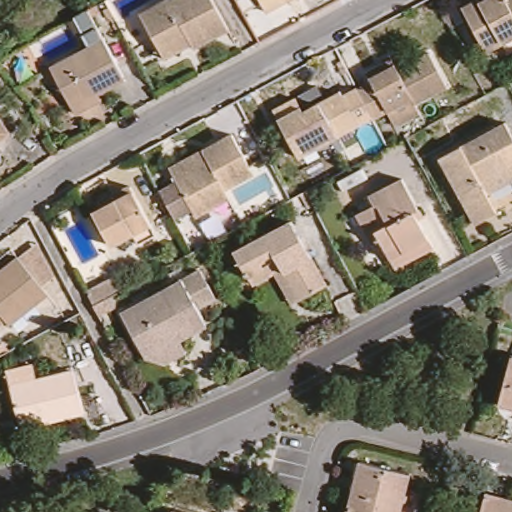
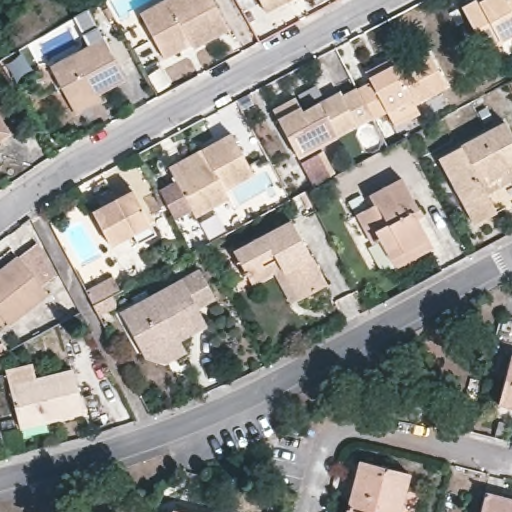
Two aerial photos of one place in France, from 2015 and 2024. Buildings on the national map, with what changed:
unchanged [(143,9),(159,0),(218,0),(233,27),(198,46),(195,41),(168,56),(162,45),(143,9)]
unchanged [(262,0),(278,0),(266,6),(262,0)]
unchanged [(502,34),(503,38),(487,46),(462,1),(464,0),(512,0),(512,28),(502,34)]
unchanged [(55,59),(107,30),(127,68),(102,83),(105,89),(79,103),(75,97),(55,59)]
unchanged [(362,86),(375,79),(374,75),(370,68),(395,55),(399,61),(406,58),(408,62),(433,49),(450,80),(417,99),(413,94),(377,114),(376,114),(362,86)]
unchanged [(298,144),(283,116),(278,106),(300,94),(306,104),(308,108),(345,88),(347,91),(360,84),(362,86),(376,114),(323,141),(320,134),(298,144)]
unchanged [(0,138),(0,109),(13,129),(0,138)]
unchanged [(478,218),(443,153),(510,118),(512,122),(512,201),(478,218)]
unchanged [(195,211),(173,172),(170,164),(202,146),(231,130),(252,169),(223,184),(228,194),(195,211)]
unchanged [(395,258),(390,248),(380,230),(373,234),(357,204),(374,195),(370,187),(402,170),(418,199),(422,206),(417,209),(427,229),(432,238),(395,258)]
unchanged [(117,194),(115,188),(133,178),(147,201),(160,224),(144,234),(147,239),(123,251),(97,204),(117,194)]
unchanged [(253,266),(240,242),(297,212),(330,275),(303,289),(296,294),(280,264),(257,274),(253,266)]
unchanged [(23,263),(39,250),(41,251),(42,252),(45,263),(53,276),(41,284),(47,292),(8,324),(0,313),(0,266),(15,254),(23,263)]
unchanged [(147,345),(127,309),(205,267),(220,294),(202,303),(210,320),(185,334),(192,347),(170,359),(150,352),(147,345)]
unchanged [(132,297),(104,311),(100,301),(92,286),(116,273),(124,287),(127,286),(132,297)]
unchanged [(504,399),(512,367),(512,401),(504,399)]
unchanged [(12,379),(38,372),(42,386),(80,376),(90,412),(53,421),(52,418),(25,424),(12,379)]
unchanged [(410,489),(404,512),(364,512),(352,509),(365,461),(413,474),(410,489)]
unchanged [(490,488),(512,494),(512,512),(484,512),(490,488)]
unchanged [(177,507),(198,512),(170,512),(172,506),(177,507)]
unchanged [(364,512),(352,512),(352,509),(364,512)]

